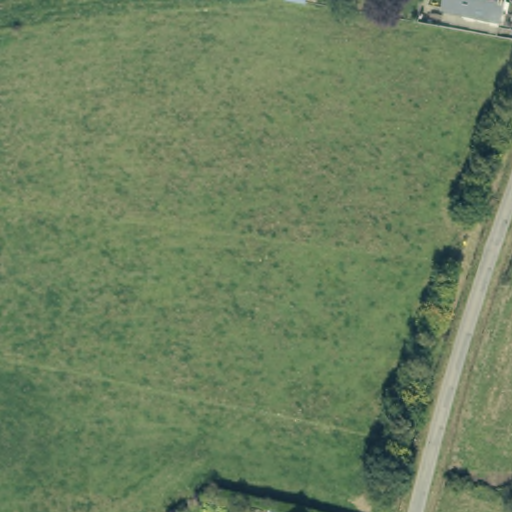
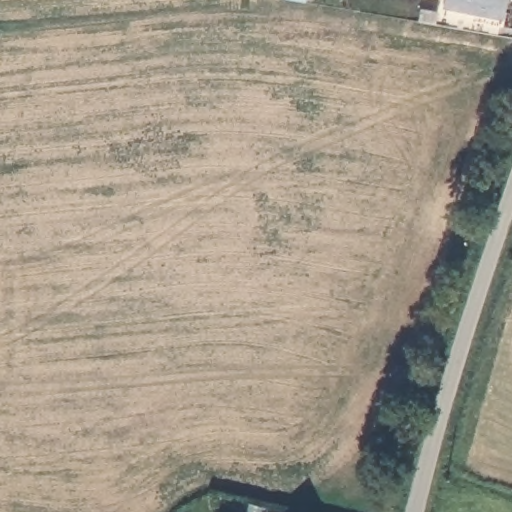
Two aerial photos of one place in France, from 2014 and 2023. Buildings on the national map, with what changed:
unchanged [(502,0),(497,19),(442,7),(444,0),(502,0)]

